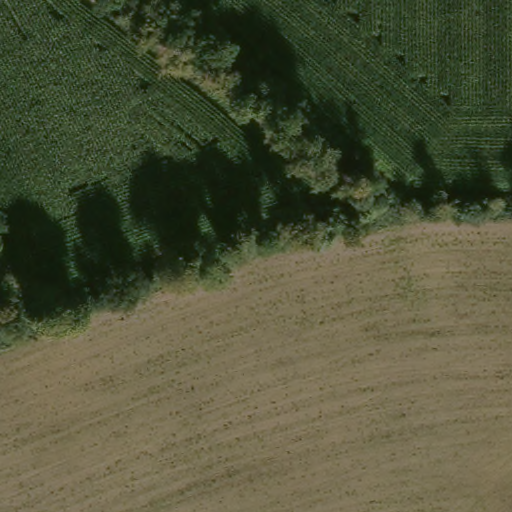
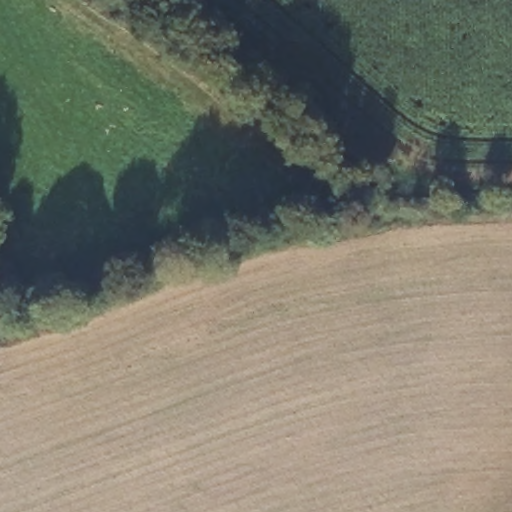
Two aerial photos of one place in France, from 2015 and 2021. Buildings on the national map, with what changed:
[]

